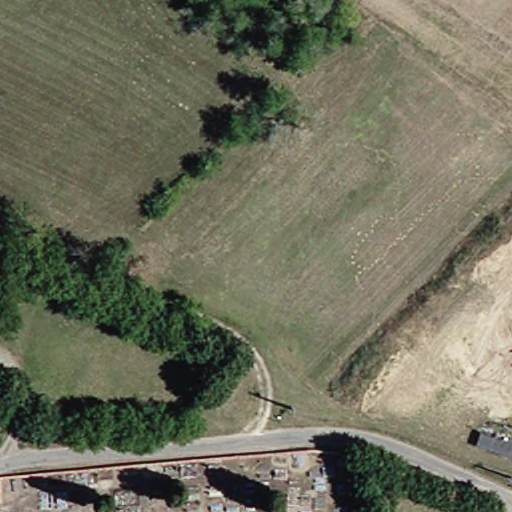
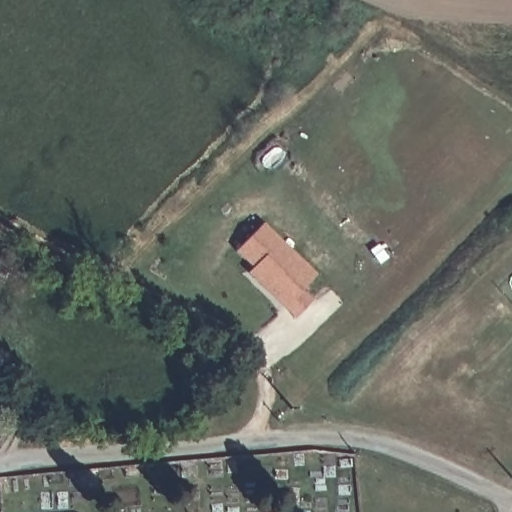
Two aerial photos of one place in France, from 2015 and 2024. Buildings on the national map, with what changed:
new [(240,251),(267,224),(303,259),(319,275),(308,286),(304,290),(315,301),(297,318),(258,279),(251,273),(257,267),(240,251)]
unchanged [(404,411),(413,416),(408,427),(397,423),(404,411)]
unchanged [(8,442),(0,441),(0,423),(9,425),(8,442)]

